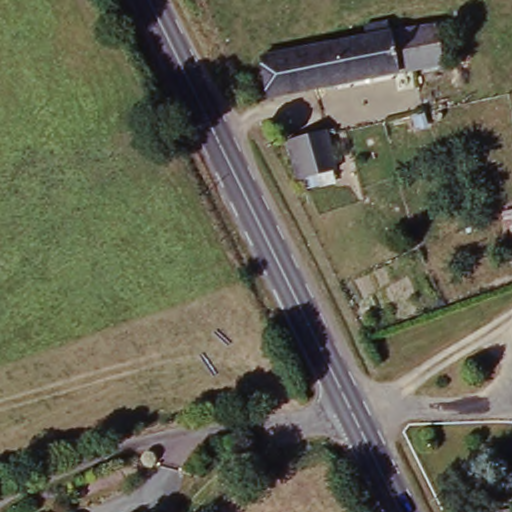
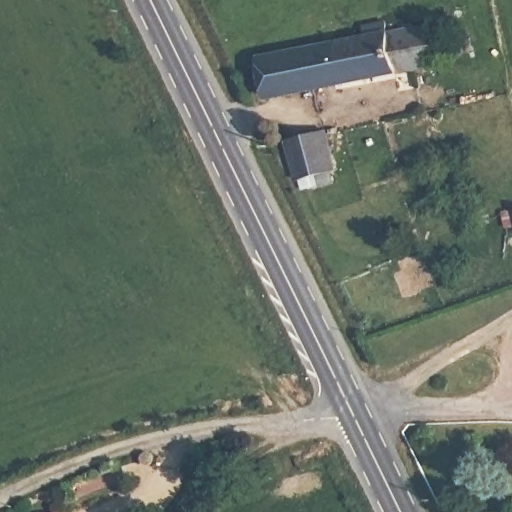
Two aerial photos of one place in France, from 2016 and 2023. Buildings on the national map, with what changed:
unchanged [(262,55),(369,34),(368,24),(388,19),(389,30),(436,20),(439,36),(452,35),(456,58),(444,60),(269,92),(262,55)]
unchanged [(331,129),(340,167),(301,175),(294,138),(331,129)]

